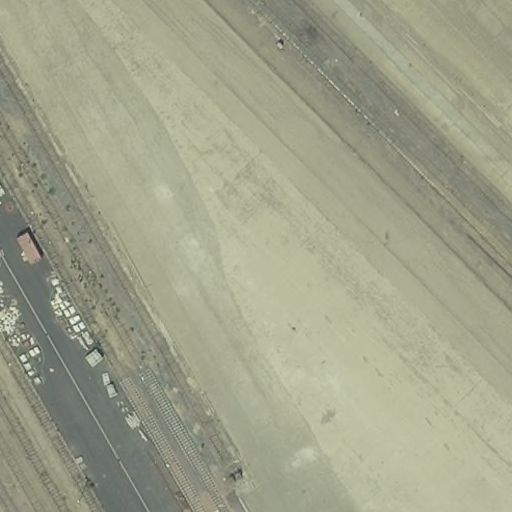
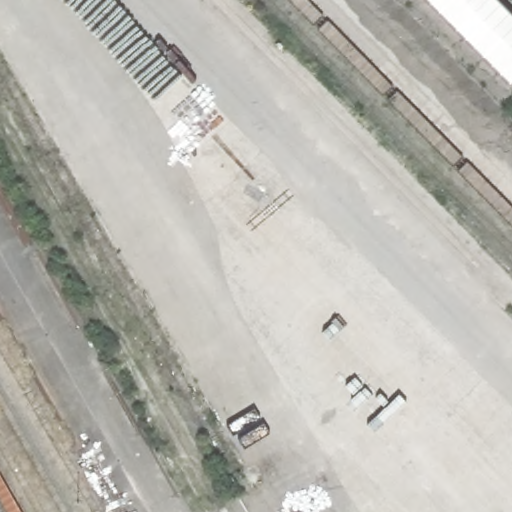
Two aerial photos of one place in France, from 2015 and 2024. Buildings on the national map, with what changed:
new [(427,0),(497,0),(512,15),(512,87),(427,0)]

